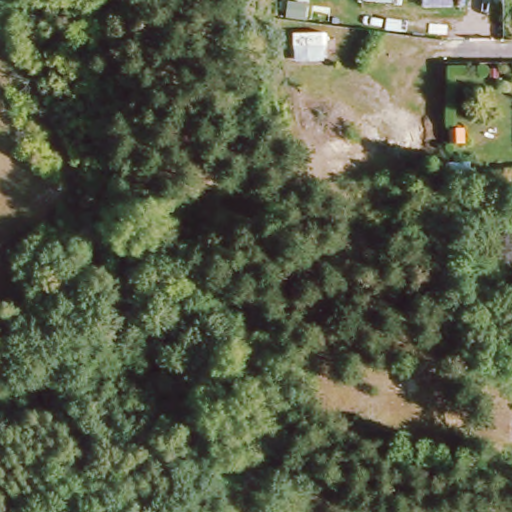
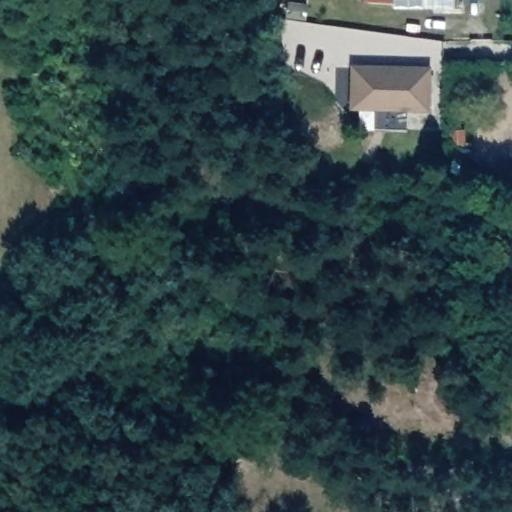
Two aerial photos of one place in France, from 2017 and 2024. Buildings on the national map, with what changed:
unchanged [(362,0),(393,0),(393,2),(362,2),(362,0)]
new [(429,65),(430,112),(348,110),(350,63),(429,65)]

